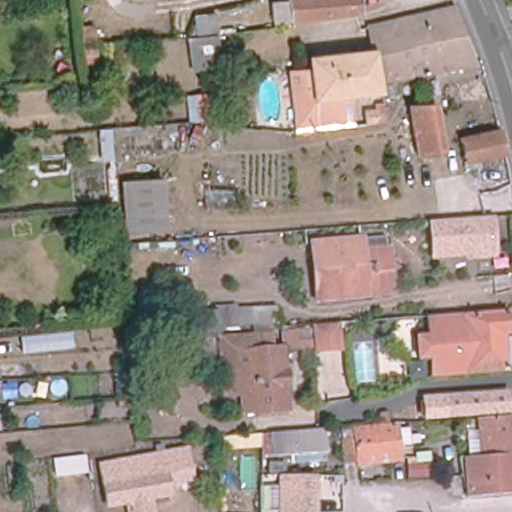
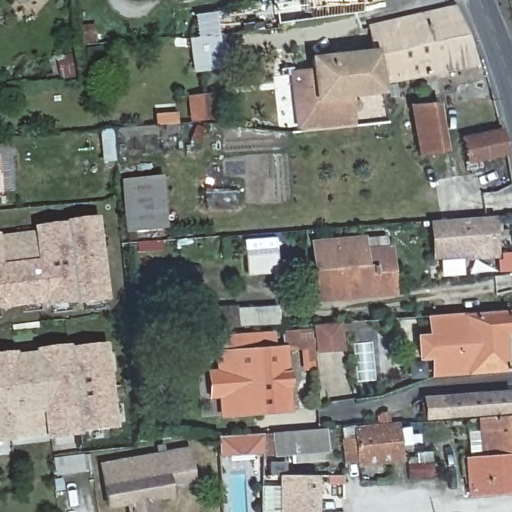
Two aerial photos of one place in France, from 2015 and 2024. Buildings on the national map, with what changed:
unchanged [(365,12),(281,24),(278,4),(293,1),(293,0),(364,0),(365,12)]
new [(512,4),(510,0),(512,0),(512,4)]
unchanged [(476,63),(382,82),(376,51),(375,51),(370,27),(378,25),(451,7),(453,7),(476,63)]
unchanged [(219,31),(199,34),(196,17),(216,14),(219,31)]
unchanged [(219,65),(195,67),(190,38),(215,35),(219,65)]
unchanged [(300,132),(298,125),(293,74),(313,72),(311,57),(375,51),(376,51),(382,82),(383,89),(384,94),(343,98),(345,120),(346,127),(300,132)]
demolished [(488,99),(459,105),(455,87),(485,80),(488,99)]
unchanged [(215,121),(190,125),(187,97),(211,93),(215,121)]
demolished [(387,121),(367,124),(365,112),(377,110),(376,104),(385,103),(387,121)]
unchanged [(440,152),(418,156),(409,105),(432,103),(440,152)]
unchanged [(505,152),(465,161),(460,140),(459,129),(498,121),(501,131),(505,152)]
unchanged [(115,160),(104,161),(101,132),(113,132),(115,160)]
unchanged [(164,230),(129,232),(125,182),(160,180),(164,230)]
new [(466,256),(432,258),(430,220),(496,215),(498,252),(512,251),(512,271),(497,272),(496,258),(467,261),(466,256)]
new [(39,236),(38,232),(67,228),(67,226),(97,222),(106,301),(76,304),(76,302),(47,306),(46,302),(6,306),(6,308),(0,309),(0,240),(39,236)]
unchanged [(393,291),(317,298),(312,246),(359,242),(359,238),(386,236),(387,251),(390,251),(393,291)]
unchanged [(281,323),(242,325),(241,308),(280,307),(281,323)]
unchanged [(223,327),(195,328),(195,312),(222,311),(223,327)]
unchanged [(506,370),(434,375),(432,356),(430,337),(429,316),(435,316),(466,313),(466,317),(506,313),(507,313),(509,332),(503,333),(506,370)]
unchanged [(346,348),(321,350),(319,324),(345,322),(346,348)]
unchanged [(257,413),(257,411),(242,412),(241,396),(225,397),(221,340),(260,337),(261,350),(275,349),(286,348),(289,385),(278,386),(280,412),(257,413)]
new [(115,428),(80,432),(81,435),(50,438),(50,433),(12,437),(13,441),(0,443),(0,359),(16,357),(15,358),(40,356),(40,353),(71,350),(71,352),(106,348),(115,428)]
unchanged [(510,411),(426,418),(425,401),(445,398),(445,397),(508,392),(510,411)]
unchanged [(388,420),(381,420),(381,413),(387,413),(388,420)]
unchanged [(481,433),(480,417),(512,415),(512,453),(482,455),(481,433)]
unchanged [(340,428),(353,427),(399,423),(401,459),(356,462),(343,463),(340,428)]
unchanged [(290,463),(289,452),(270,453),(270,432),(324,429),(326,450),(327,461),(290,463)]
demolished [(217,452),(217,437),(264,436),(265,450),(217,452)]
unchanged [(107,506),(100,463),(156,455),(155,448),(163,447),(171,495),(152,498),(154,512),(129,512),(127,502),(107,506)]
unchanged [(466,456),(472,456),(482,455),(512,453),(512,491),(468,493),(466,456)]
unchanged [(88,467),(57,471),(56,461),(86,457),(88,467)]
unchanged [(433,477),(408,477),(408,463),(433,464),(433,477)]
unchanged [(283,465),(282,474),(315,476),(342,476),(341,512),(260,512),(260,477),(268,476),(265,467),(283,465)]

